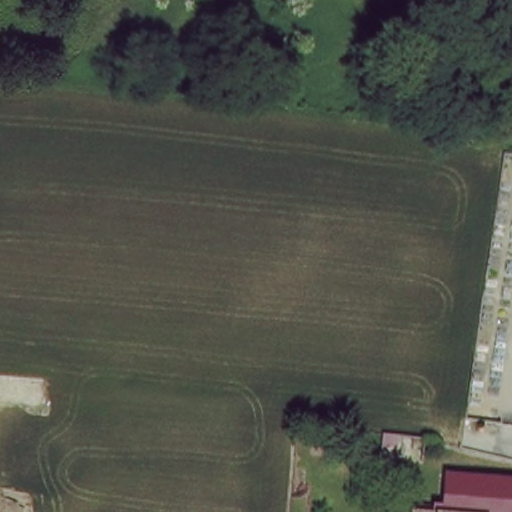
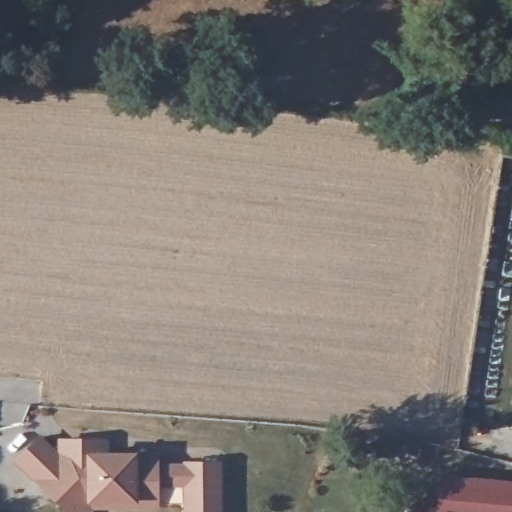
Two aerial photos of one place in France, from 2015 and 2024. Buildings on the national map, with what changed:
new [(36,441),(58,462),(57,443),(98,443),(98,458),(153,457),(154,470),(183,470),(183,466),(216,466),(216,512),(184,512),(184,486),(154,487),(154,508),(88,510),(85,512),(64,512),(15,465),(36,441)]
unchanged [(425,503),(435,503),(437,483),(512,490),(512,512),(424,512),(425,503)]

